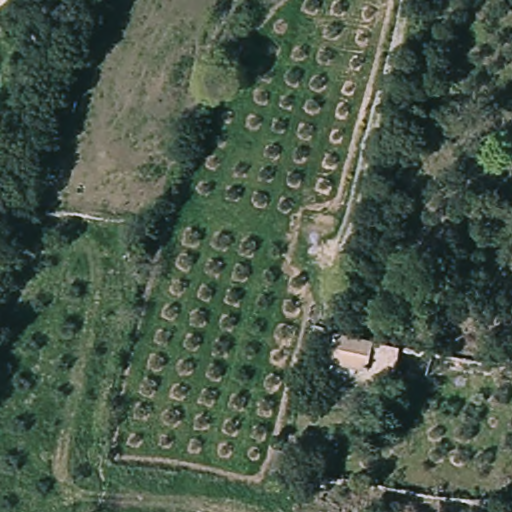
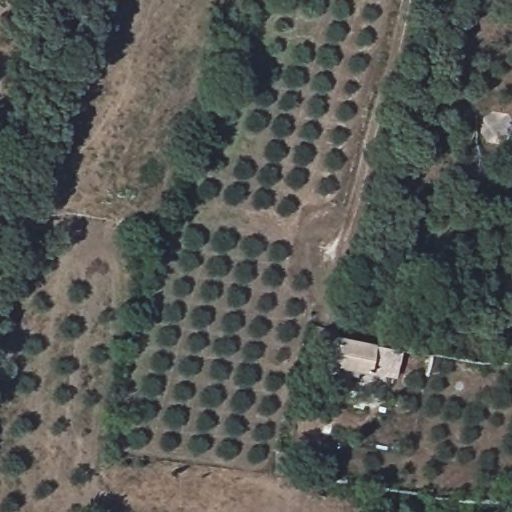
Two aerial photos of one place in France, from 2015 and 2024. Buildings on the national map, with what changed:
unchanged [(330,365),(335,333),(338,333),(348,335),(391,349),(383,373),(357,365),(356,373),(342,369),(330,365)]

